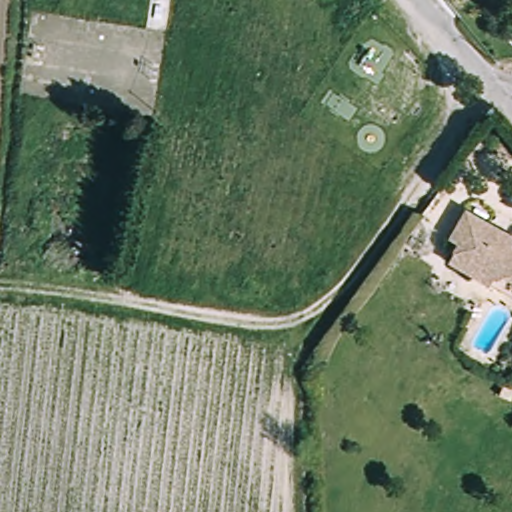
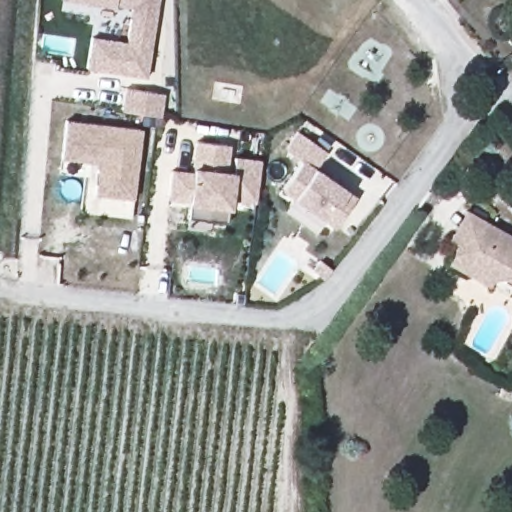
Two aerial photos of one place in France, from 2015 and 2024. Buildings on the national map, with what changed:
new [(131,8),(114,5),(114,7),(61,0),(158,0),(146,78),(86,69),(91,38),(125,42),(131,8)]
new [(163,95),(159,117),(123,111),(126,89),(163,95)]
new [(61,160),(66,121),(141,130),(133,199),(94,196),(98,164),(61,160)]
new [(297,132),(327,153),(315,168),(346,190),(356,198),(335,229),(326,222),(293,200),(280,191),(301,163),(284,150),(297,132)]
new [(229,199),(228,209),(226,222),(186,218),(188,203),(166,200),(171,171),(191,172),(193,167),(196,142),(229,146),(226,171),(233,172),(235,156),(261,160),(254,203),(229,199)]
unchanged [(504,279),(491,290),(449,267),(459,246),(449,238),(467,210),(512,237),(512,283),(504,279)]

